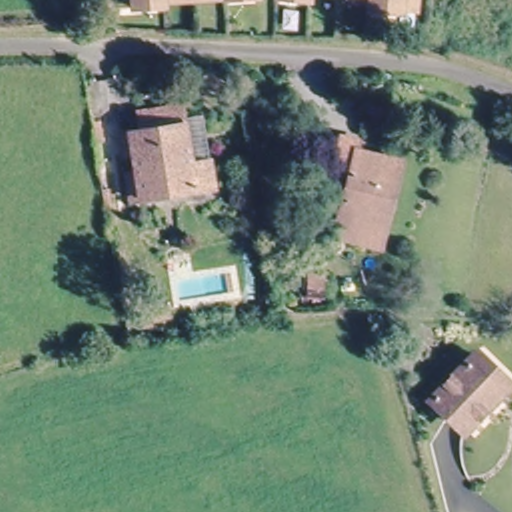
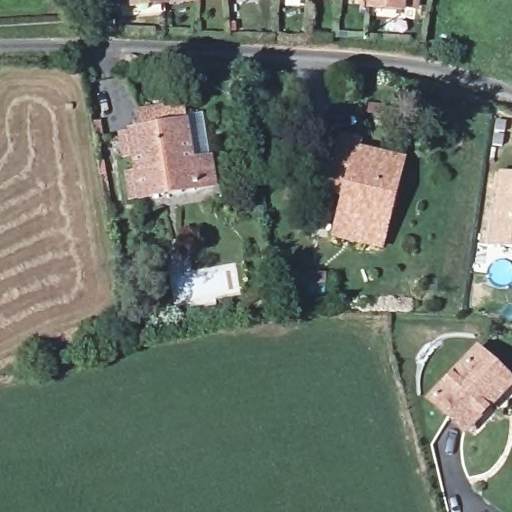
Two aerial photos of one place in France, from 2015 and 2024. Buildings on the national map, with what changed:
unchanged [(162,0),(163,1),(118,3),(117,0),(162,0)]
unchanged [(280,0),(312,0),(312,4),(280,0)]
unchanged [(373,14),(374,1),(365,0),(419,0),(417,18),(373,14)]
unchanged [(129,205),(125,186),(140,182),(136,160),(126,162),(123,141),(149,139),(145,121),(189,116),(195,178),(209,176),(211,195),(176,199),(156,201),(129,205)]
unchanged [(337,235),(341,219),(349,193),(335,190),(339,175),(350,140),(367,145),(365,151),(407,163),(384,232),(381,246),(337,235)]
new [(512,175),(512,251),(489,247),(499,173),(512,175)]
unchanged [(468,432),(433,398),(481,348),(512,379),(512,386),(468,432)]

